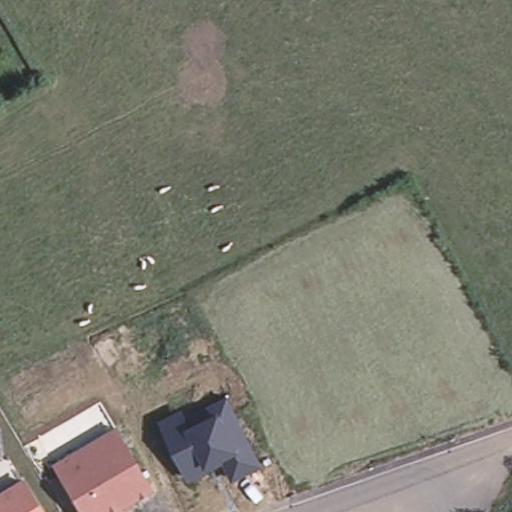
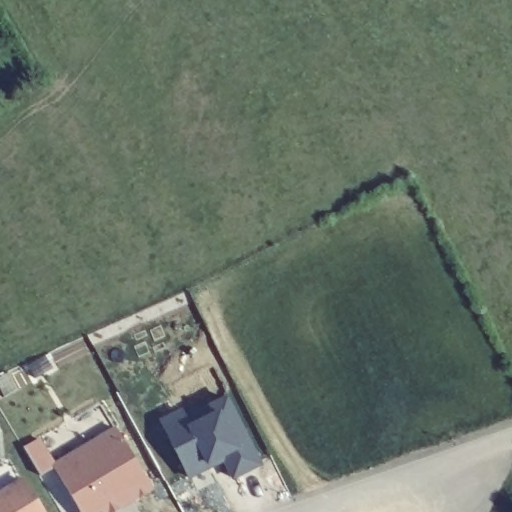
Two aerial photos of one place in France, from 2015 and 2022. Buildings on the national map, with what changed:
unchanged [(157,420),(181,408),(186,417),(227,398),(261,467),(232,481),(225,465),(187,482),(157,420)]
unchanged [(117,428),(153,491),(118,512),(100,512),(78,512),(51,465),(117,428)]
unchanged [(9,462),(24,488),(0,501),(0,467),(9,462)]
unchanged [(38,512),(0,512),(0,501),(24,488),(38,512)]

